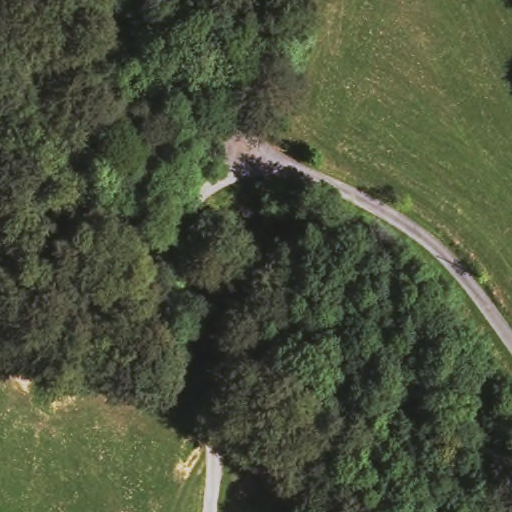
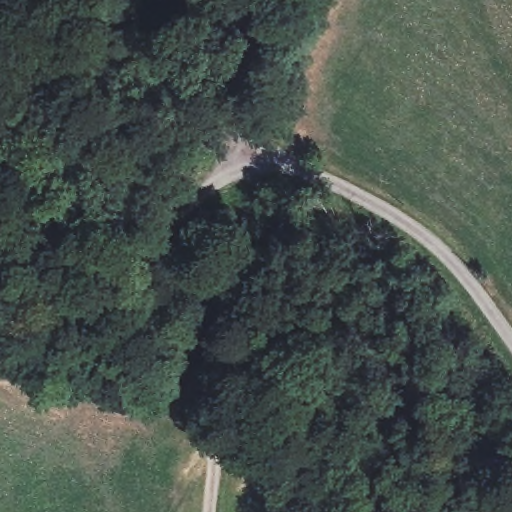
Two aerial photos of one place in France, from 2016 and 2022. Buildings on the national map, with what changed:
[]

